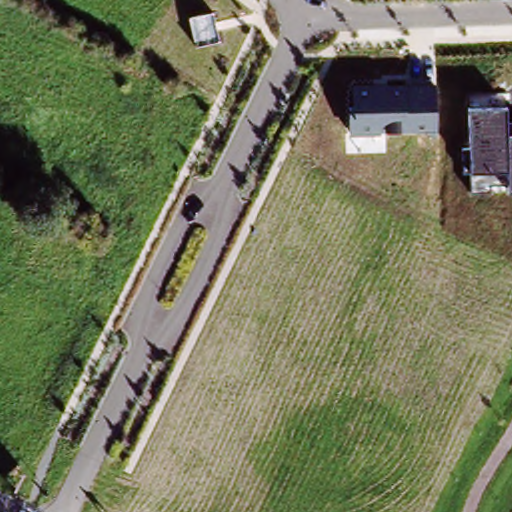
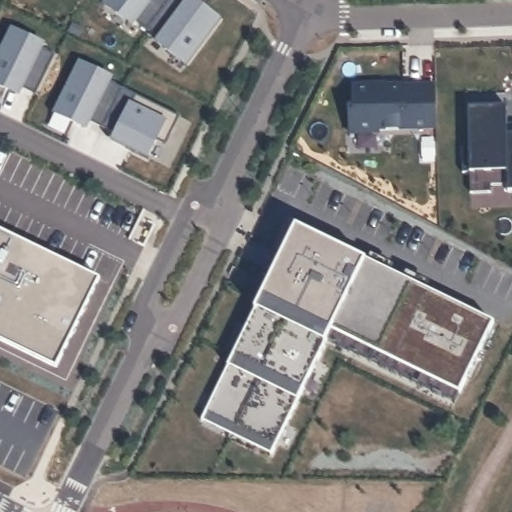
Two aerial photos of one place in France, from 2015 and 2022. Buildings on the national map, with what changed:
new [(204,5),(221,18),(182,70),(152,47),(159,38),(147,29),(136,20),(129,30),(99,8),(105,0),(185,0),(200,11),(204,5)]
new [(197,0),(204,5),(200,11),(185,1),(186,0),(197,0)]
new [(5,88),(0,85),(0,47),(10,27),(44,44),(42,47),(55,54),(35,94),(22,88),(19,94),(5,88)]
new [(91,121),(88,128),(72,120),(52,110),(77,59),(111,76),(110,79),(177,113),(164,141),(153,136),(145,155),(128,147),(112,139),(115,133),(91,121)]
unchanged [(435,84),(435,132),(349,133),(350,85),(435,84)]
unchanged [(505,121),(512,121),(512,189),(472,189),(470,108),(505,108),(505,121)]
new [(460,398),(331,334),(325,346),(299,402),(271,456),(202,421),(230,367),(257,311),(286,253),(276,248),(287,227),(296,228),(368,262),(497,324),(460,398)]
new [(101,280),(58,368),(0,340),(0,231),(101,280)]

